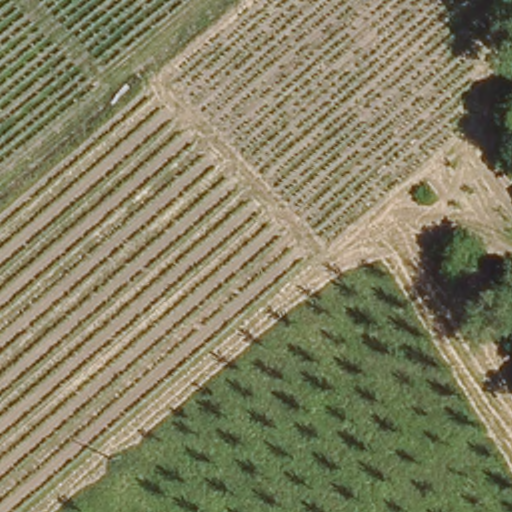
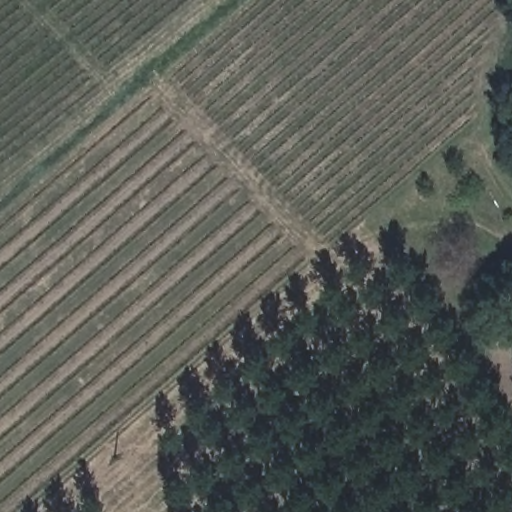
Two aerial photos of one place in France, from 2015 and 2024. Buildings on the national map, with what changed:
[]

